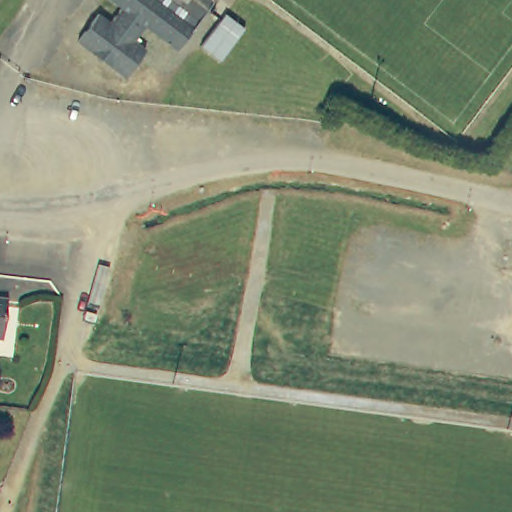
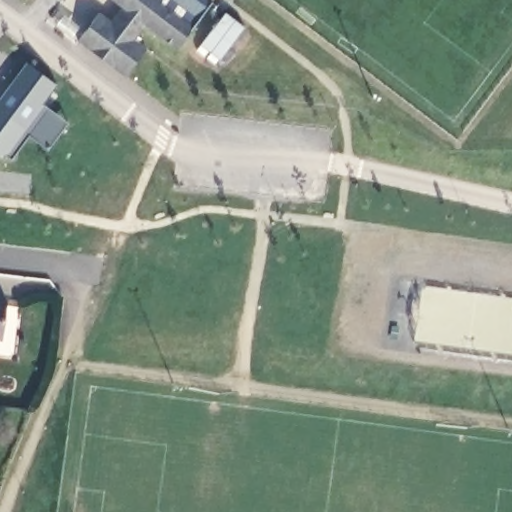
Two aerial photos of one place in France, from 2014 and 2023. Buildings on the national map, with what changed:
unchanged [(97,12),(109,21),(120,7),(111,0),(208,0),(210,2),(175,49),(144,25),(132,40),(145,49),(124,76),(75,41),(97,12)]
new [(30,137),(11,161),(5,156),(2,159),(0,157),(0,100),(26,63),(57,87),(43,106),(67,123),(47,151),(30,137)]
unchanged [(0,307),(0,300),(1,301),(0,307)]

